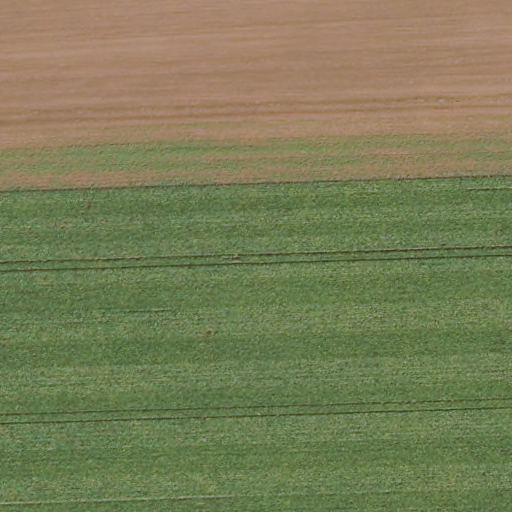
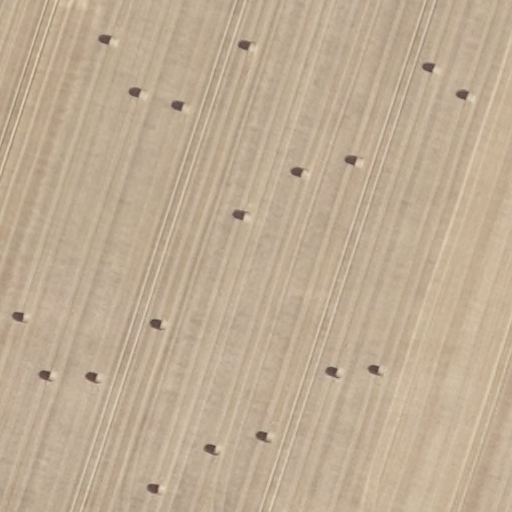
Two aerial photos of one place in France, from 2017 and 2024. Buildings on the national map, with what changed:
[]

